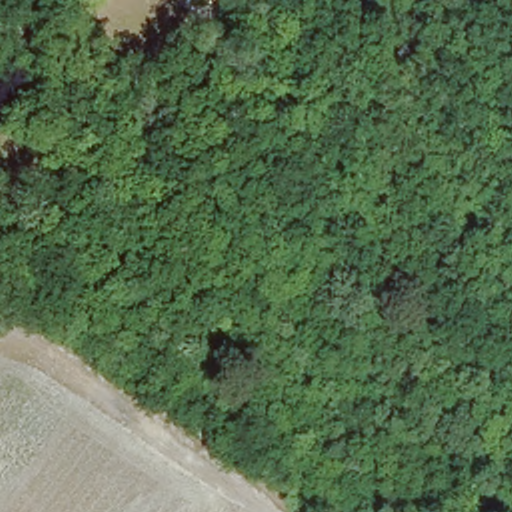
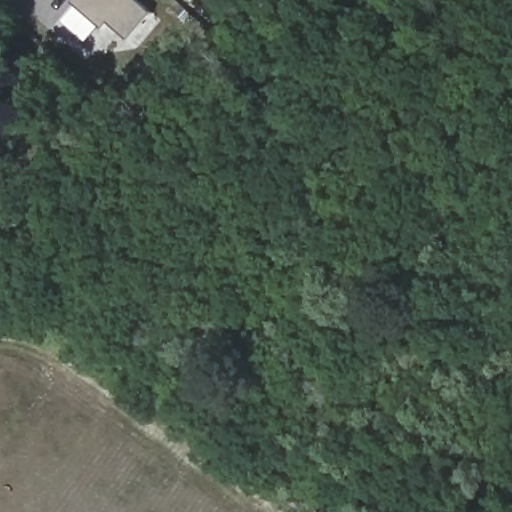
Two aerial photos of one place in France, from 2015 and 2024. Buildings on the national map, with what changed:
new [(126,42),(106,24),(101,30),(70,4),(73,0),(134,0),(150,14),(126,42)]

